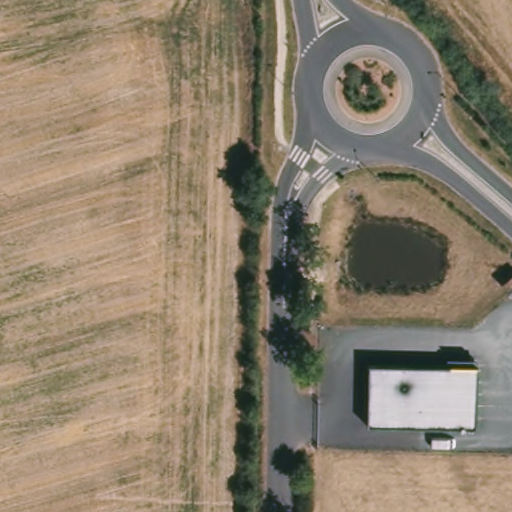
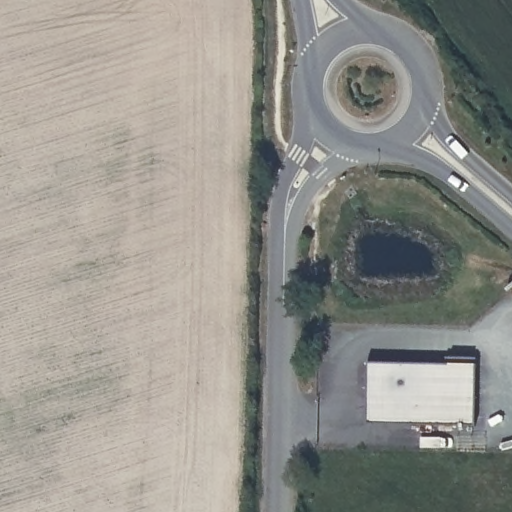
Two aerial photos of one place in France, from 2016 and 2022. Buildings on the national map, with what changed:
unchanged [(369,422),(370,365),(448,365),(449,362),(476,364),(475,425),(369,422)]

